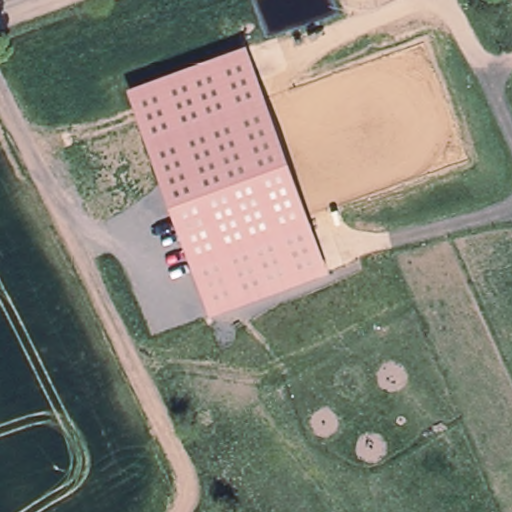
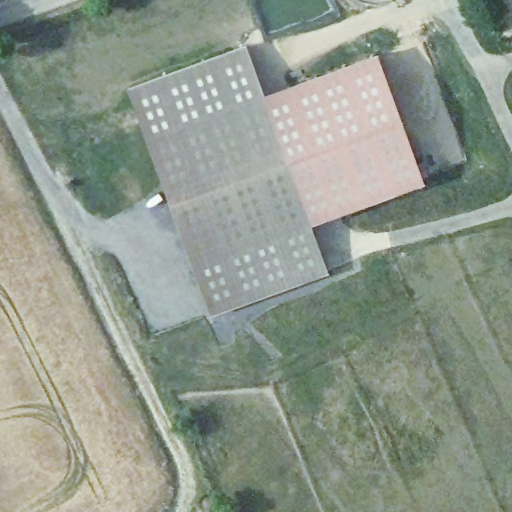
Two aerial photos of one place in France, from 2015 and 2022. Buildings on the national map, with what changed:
unchanged [(327,271),(210,313),(128,87),(247,44),(327,271)]
new [(376,51),(423,181),(310,223),(263,91),(376,51)]

